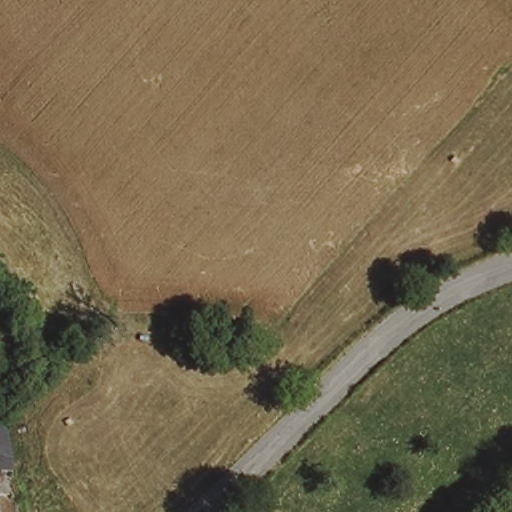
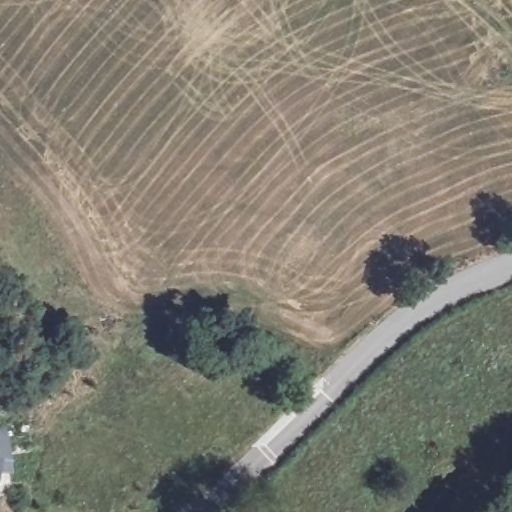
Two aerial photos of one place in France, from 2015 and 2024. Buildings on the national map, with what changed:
unchanged [(12,496),(0,493),(0,431),(10,456),(12,496)]

